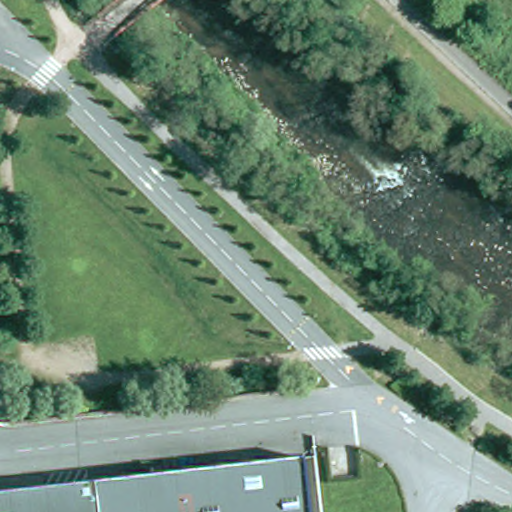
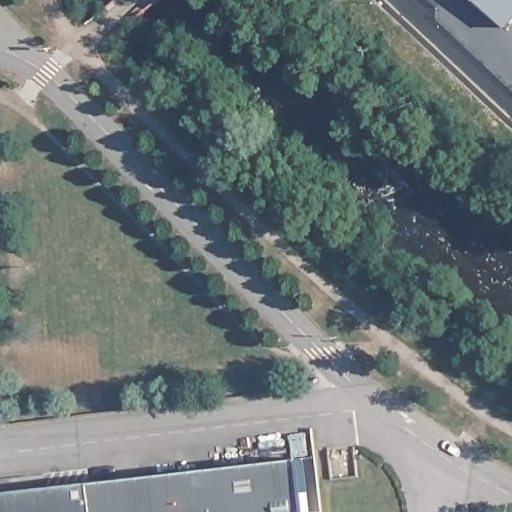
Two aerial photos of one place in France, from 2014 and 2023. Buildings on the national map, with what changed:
new [(512,0),(512,23),(508,27),(478,0),(512,0)]
unchanged [(302,469),(308,512),(102,512),(100,489),(302,469)]
unchanged [(100,489),(102,512),(0,512),(0,499),(100,489)]

